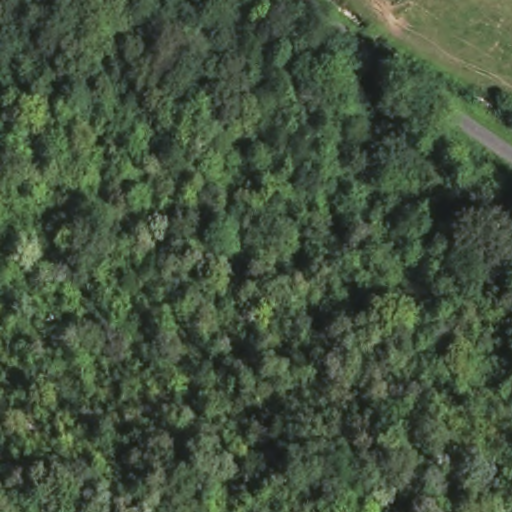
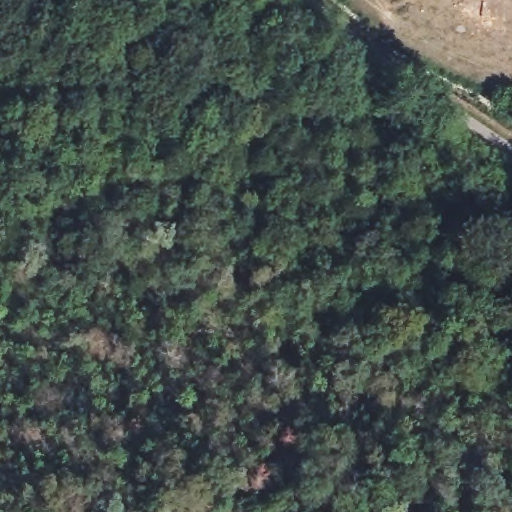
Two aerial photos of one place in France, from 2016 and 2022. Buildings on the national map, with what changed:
unchanged [(443,176),(468,141),(497,161),(512,171),(512,225),(443,176)]

